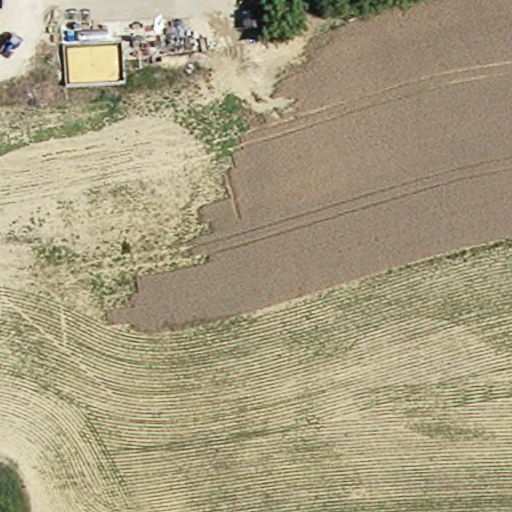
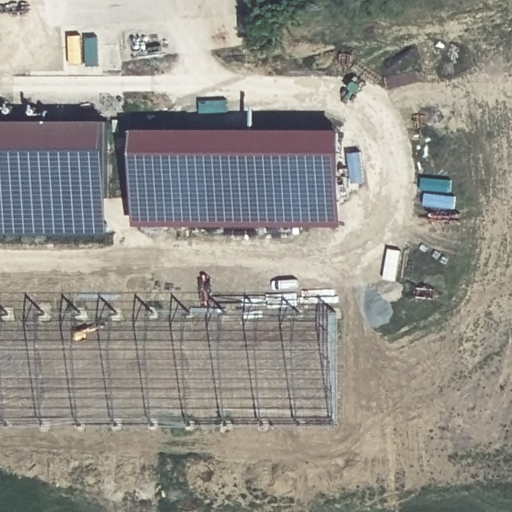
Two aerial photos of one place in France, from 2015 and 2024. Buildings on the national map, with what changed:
new [(111,236),(0,236),(0,123),(111,122),(111,236)]
new [(335,130),(338,228),(132,227),(131,131),(335,130)]

